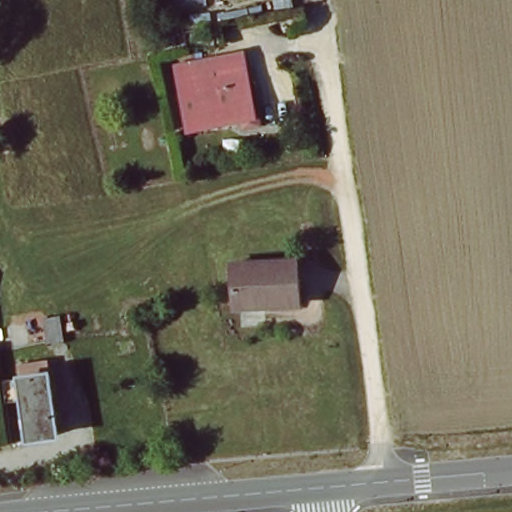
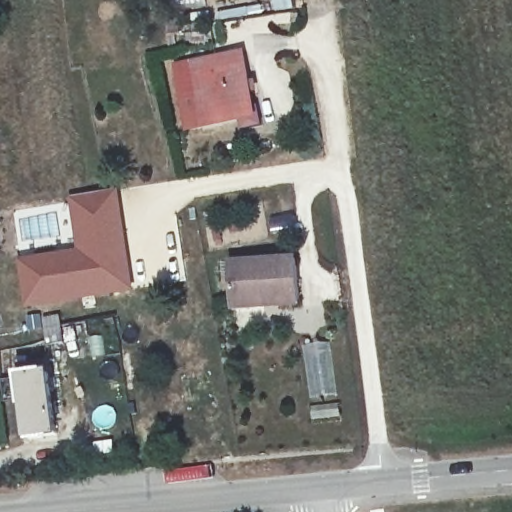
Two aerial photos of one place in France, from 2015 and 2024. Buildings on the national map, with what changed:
unchanged [(247,110),(235,113),(235,121),(195,129),(186,67),(237,57),(247,110)]
new [(75,246),(69,197),(120,189),(132,263),(135,292),(22,307),(15,257),(75,246)]
unchanged [(299,302),(257,306),(258,300),(233,302),(232,264),(295,261),(299,302)]
unchanged [(45,348),(42,332),(41,321),(58,320),(60,330),(61,345),(45,348)]
unchanged [(54,431),(27,436),(18,381),(45,377),(54,431)]

